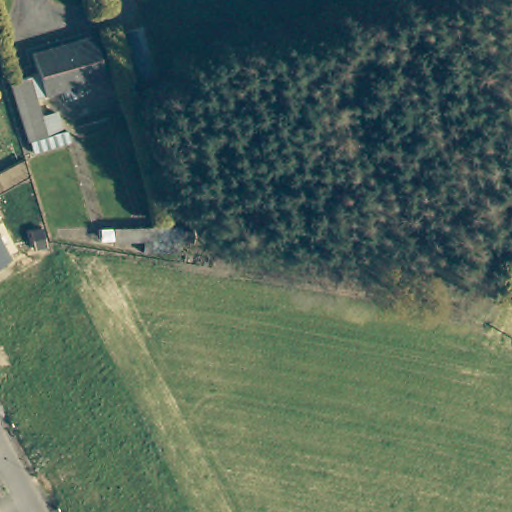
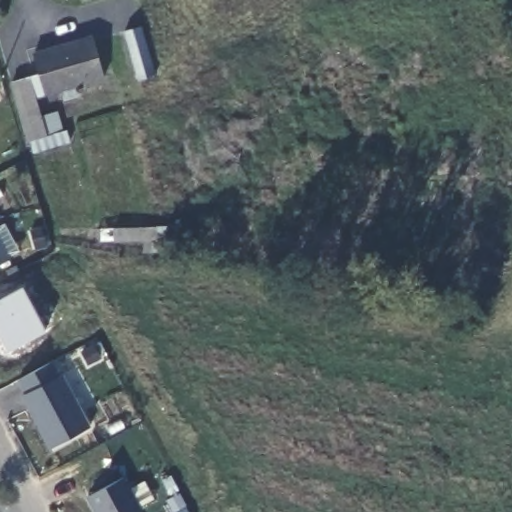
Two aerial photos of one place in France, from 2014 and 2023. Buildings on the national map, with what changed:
unchanged [(146,27),(161,79),(144,84),(128,33),(146,27)]
unchanged [(26,147),(8,86),(36,77),(31,60),(89,42),(101,85),(36,105),(47,141),(26,147)]
unchanged [(64,131),(68,130),(71,142),(35,153),(34,145),(47,141),(40,118),(60,112),(64,131)]
unchanged [(143,252),(144,242),(120,239),(121,226),(165,230),(164,244),(159,243),(158,253),(143,252)]
unchanged [(0,241),(11,260),(0,265),(0,241)]
new [(52,363),(59,375),(64,372),(92,426),(49,450),(21,397),(24,395),(18,382),(52,363)]
new [(123,474),(142,511),(140,512),(95,512),(87,498),(123,474)]

